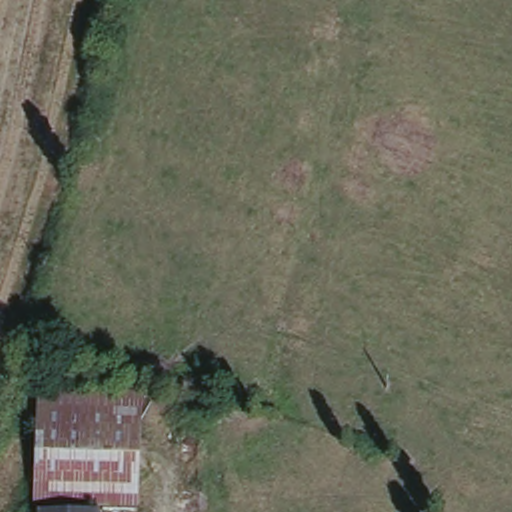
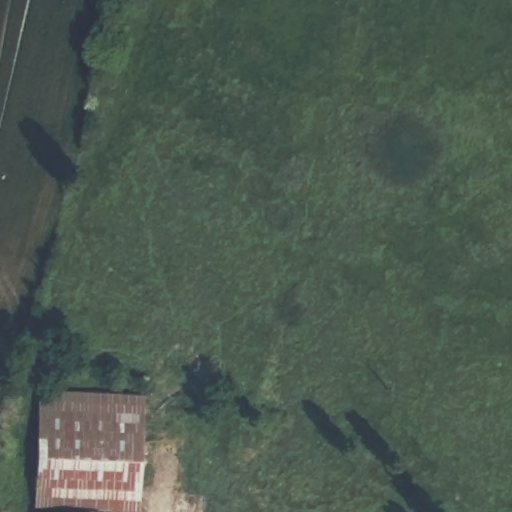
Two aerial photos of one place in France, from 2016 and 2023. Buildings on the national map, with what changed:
unchanged [(146,398),(138,509),(36,504),(43,393),(146,398)]
unchanged [(36,504),(102,507),(102,512),(37,512),(36,504)]

